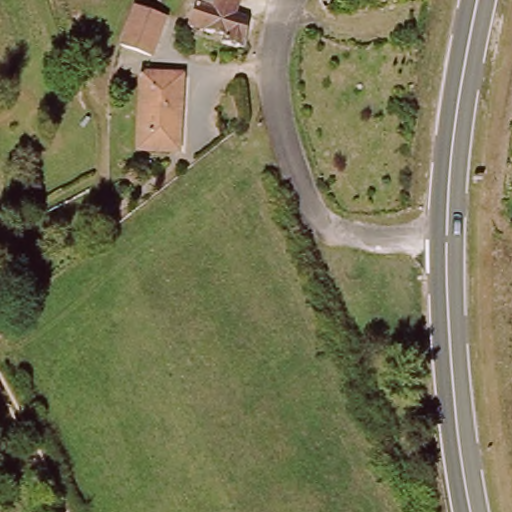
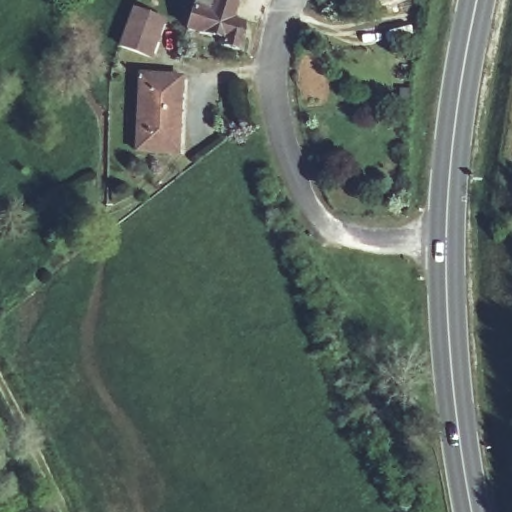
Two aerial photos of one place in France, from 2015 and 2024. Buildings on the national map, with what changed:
unchanged [(230,48),(232,39),(198,30),(209,0),(248,0),(240,22),(255,27),(251,53),(230,48)]
unchanged [(387,5),(384,0),(397,0),(387,5)]
unchanged [(178,19),(163,53),(143,44),(135,41),(150,7),(156,9),(178,19)]
unchanged [(190,152),(151,151),(153,76),(193,78),(190,152)]

